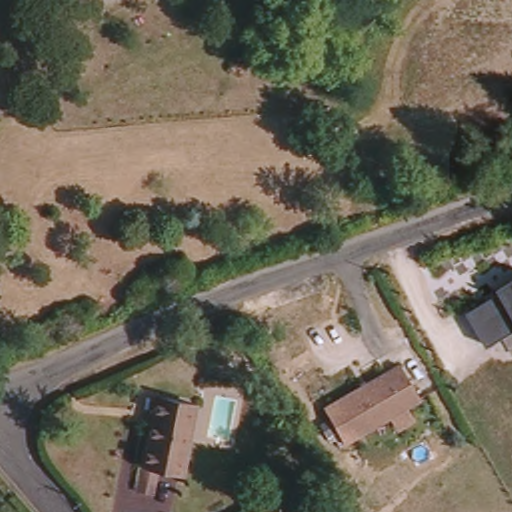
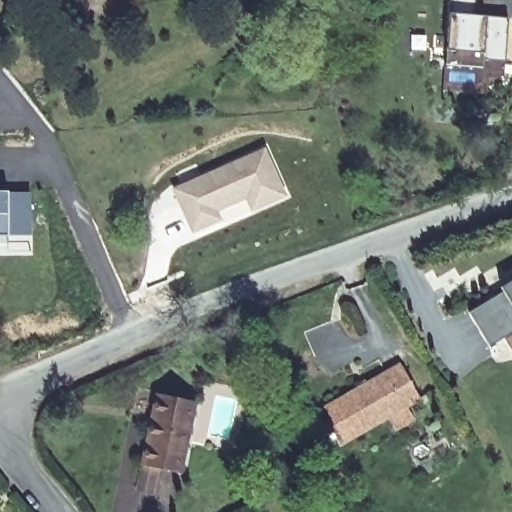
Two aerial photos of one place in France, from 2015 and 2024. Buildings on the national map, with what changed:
new [(481,67),(445,64),(447,49),(450,14),(451,0),(473,0),(472,14),(486,16),(507,18),(502,61),(482,53),(481,67)]
new [(263,147),(283,193),(251,208),(245,195),(215,209),(219,218),(192,230),(173,188),(263,147)]
new [(30,219),(7,219),(7,241),(7,254),(0,254),(0,199),(29,199),(30,219)]
unchanged [(488,346),(465,307),(512,279),(512,332),(488,346)]
unchanged [(347,439),(328,404),(406,362),(425,397),(347,439)]
unchanged [(195,408),(181,473),(147,466),(159,401),(195,408)]

